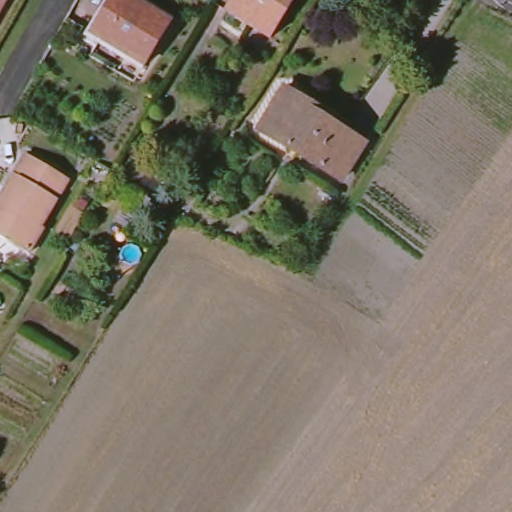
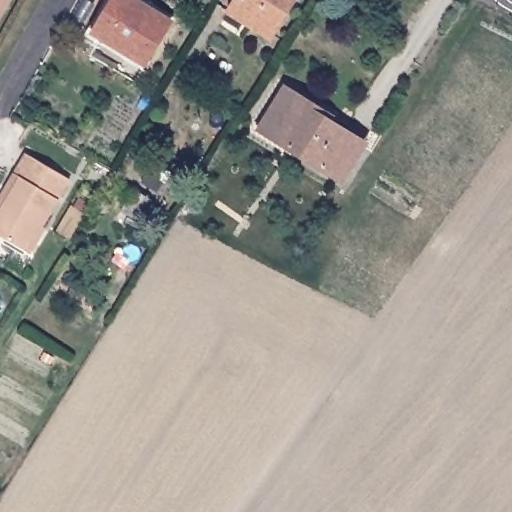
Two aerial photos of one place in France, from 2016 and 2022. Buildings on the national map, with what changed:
unchanged [(0,3),(0,0),(3,0),(1,4),(0,3)]
unchanged [(110,0),(135,0),(169,20),(144,64),(90,32),(110,0)]
unchanged [(234,0),(291,0),(268,35),(227,10),(234,0)]
unchanged [(259,127),(282,90),(327,117),(326,122),(362,144),(340,179),(259,127)]
unchanged [(0,209),(1,209),(20,176),(13,173),(26,153),(67,178),(38,224),(41,225),(26,251),(0,236),(0,209)]
unchanged [(115,219),(132,189),(149,198),(130,231),(115,219)]

